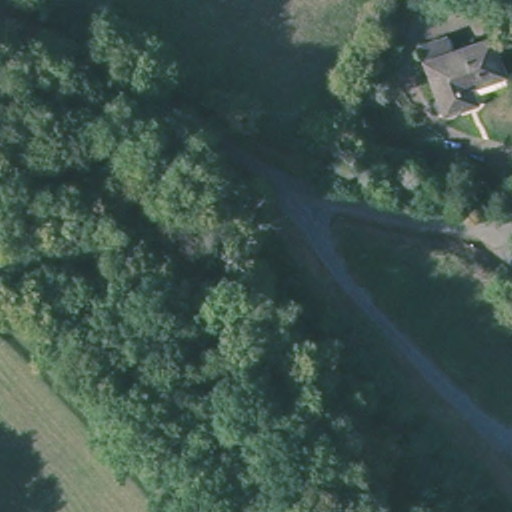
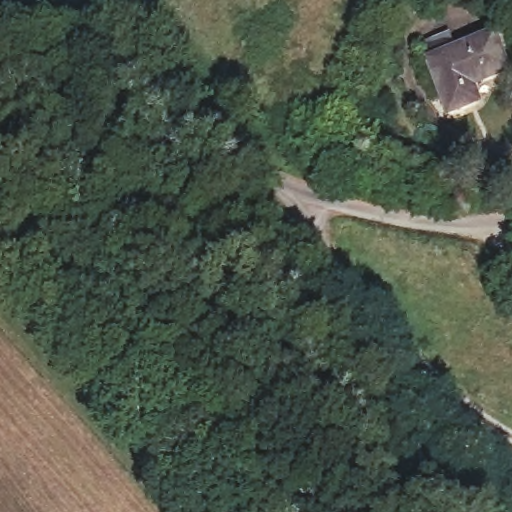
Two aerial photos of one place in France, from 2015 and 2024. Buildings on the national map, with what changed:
unchanged [(472,107),(449,116),(428,61),(496,33),(511,73),(479,85),(484,102),(472,107)]

